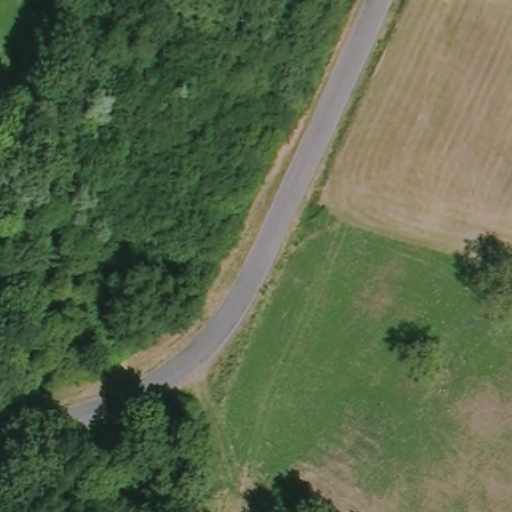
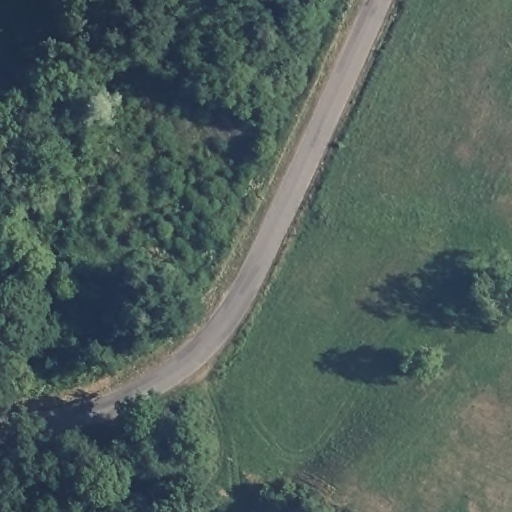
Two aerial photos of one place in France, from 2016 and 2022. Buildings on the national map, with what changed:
unchanged [(46,512),(49,504),(71,512),(46,512)]

